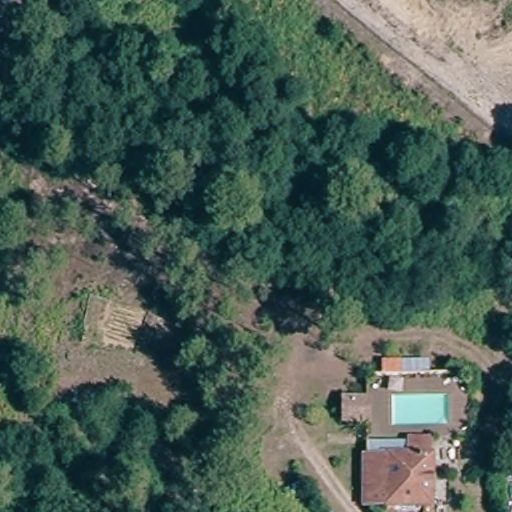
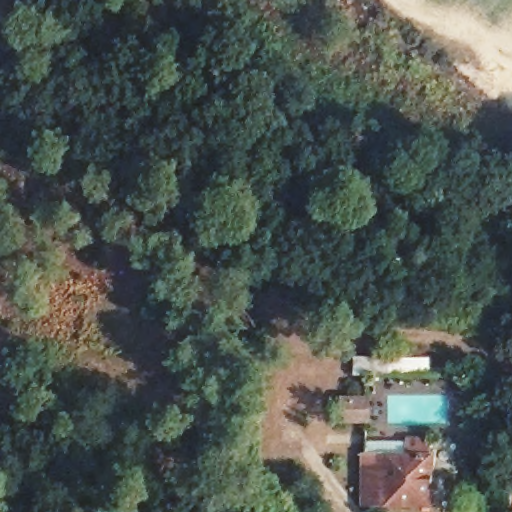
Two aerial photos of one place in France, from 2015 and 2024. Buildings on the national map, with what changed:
unchanged [(397,365),(405,365),(437,366),(437,377),(421,377),(397,377),(397,365)]
unchanged [(377,401),(377,424),(355,424),(355,401),(377,401)]
unchanged [(428,510),(365,509),(366,458),(410,459),(410,444),(428,444),(428,510)]

